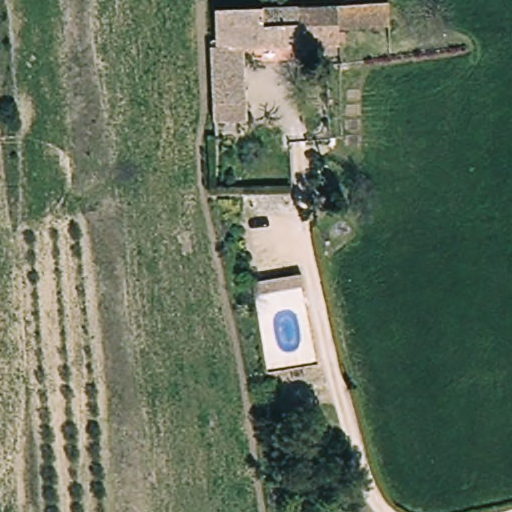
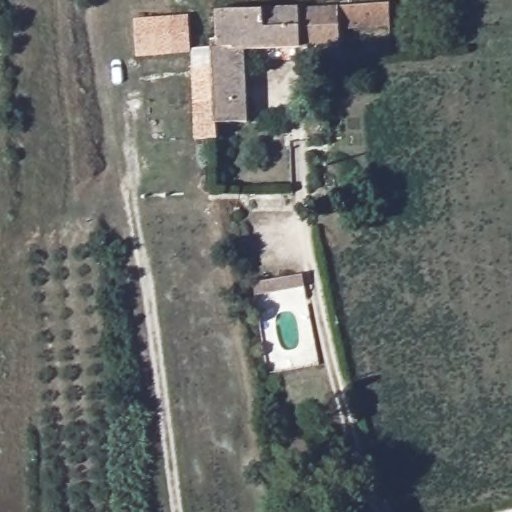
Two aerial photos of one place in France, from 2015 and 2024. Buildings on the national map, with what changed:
unchanged [(388,0),(389,20),(338,23),(339,40),(242,43),(245,116),(214,118),(210,38),(216,37),(215,8),(388,0)]
new [(134,20),(190,16),(191,54),(136,59),(134,20)]
new [(210,48),(214,118),(245,116),(245,121),(216,122),(217,138),(195,140),(193,50),(210,48)]
unchanged [(303,287),(253,295),(251,283),(301,275),(303,287)]

